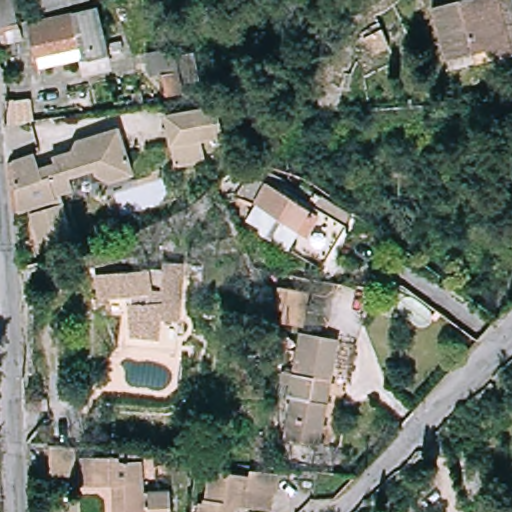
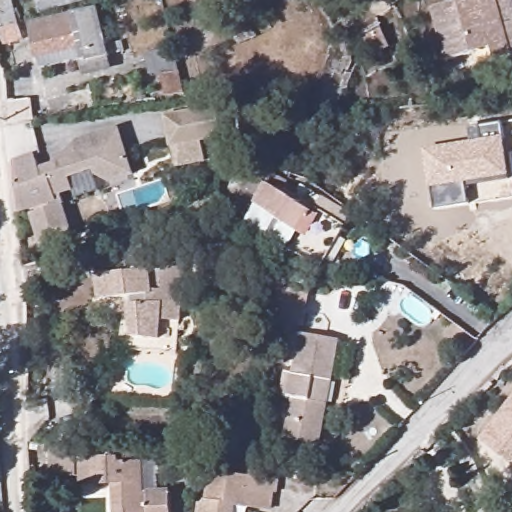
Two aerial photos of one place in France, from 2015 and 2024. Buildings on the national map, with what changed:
unchanged [(34,0),(85,0),(39,12),(34,0)]
unchanged [(389,0),(409,0),(396,10),(389,0)]
unchanged [(512,0),(512,56),(497,60),(494,51),(442,63),(429,7),(455,0),(512,0)]
unchanged [(87,72),(85,63),(84,58),(40,67),(37,55),(30,24),(74,15),(73,10),(104,4),(116,56),(117,65),(87,72)]
unchanged [(4,9),(14,7),(19,27),(0,31),(0,10),(4,9)]
unchanged [(378,23),(389,42),(372,53),(359,32),(378,23)]
unchanged [(181,90),(163,93),(157,72),(154,47),(169,43),(177,69),(181,90)]
unchanged [(32,97),(36,117),(11,121),(7,104),(7,102),(32,97)]
unchanged [(224,104),(230,133),(200,138),(203,158),(178,162),(171,112),(224,104)]
new [(434,210),(423,149),(472,141),(470,128),(504,123),(512,122),(512,155),(510,155),(512,170),(512,197),(469,205),(434,210)]
unchanged [(32,156),(36,168),(51,164),(49,157),(68,152),(73,141),(117,127),(132,175),(106,184),(89,172),(68,179),(71,191),(52,197),(53,199),(16,213),(9,162),(32,156)]
unchanged [(256,205),(237,197),(244,184),(264,170),(288,180),(282,190),(322,214),(331,198),(340,204),(355,214),(323,266),(289,246),(246,223),(256,205)]
unchanged [(32,213),(62,202),(74,235),(44,246),(32,213)]
unchanged [(151,266),(154,287),(163,287),(164,259),(186,261),(182,317),(163,316),(162,336),(130,332),(129,293),(99,297),(96,271),(151,266)]
unchanged [(49,266),(51,288),(26,292),(23,271),(49,266)]
unchanged [(69,266),(70,278),(53,280),(52,268),(69,266)]
unchanged [(303,292),(301,325),(282,323),(280,309),(273,310),(274,290),(303,292)]
unchanged [(288,332),(286,363),(277,362),(275,332),(288,332)]
unchanged [(333,338),(329,437),(298,436),(300,403),(288,402),(289,374),(296,375),(297,337),(333,338)]
new [(512,397),(512,467),(479,441),(512,397)]
unchanged [(57,480),(41,478),(45,445),(75,447),(74,455),(71,482),(57,480)]
unchanged [(144,496),(166,496),(166,512),(108,512),(108,496),(70,492),(71,482),(74,455),(108,458),(108,451),(144,455),(144,496)]
unchanged [(196,505),(201,506),(207,473),(248,479),(249,473),(279,477),(275,512),(259,512),(234,508),(234,512),(195,512),(196,505)]

